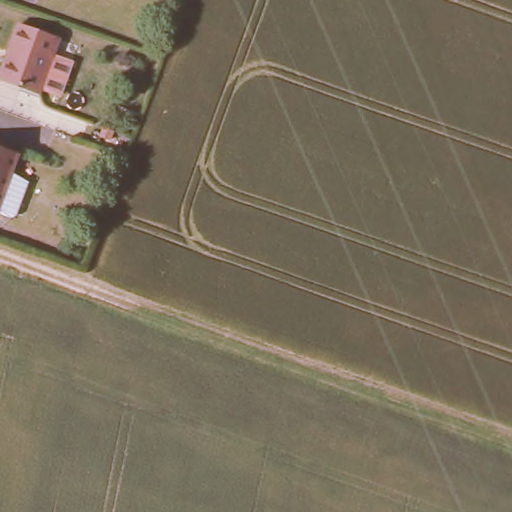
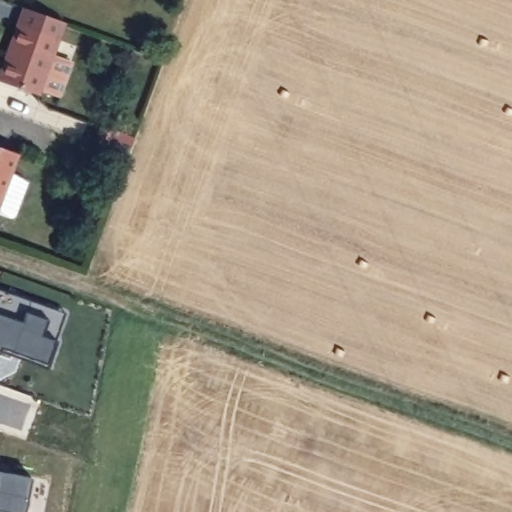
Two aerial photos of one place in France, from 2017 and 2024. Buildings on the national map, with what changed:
unchanged [(10,65),(15,67),(19,56),(14,55),(23,31),(63,45),(43,99),(4,84),(10,65)]
unchanged [(0,203),(0,154),(16,160),(0,203)]
new [(58,341),(48,367),(0,352),(0,353),(0,292),(65,313),(55,340),(58,341)]
new [(25,512),(0,512),(0,472),(32,478),(25,512)]

